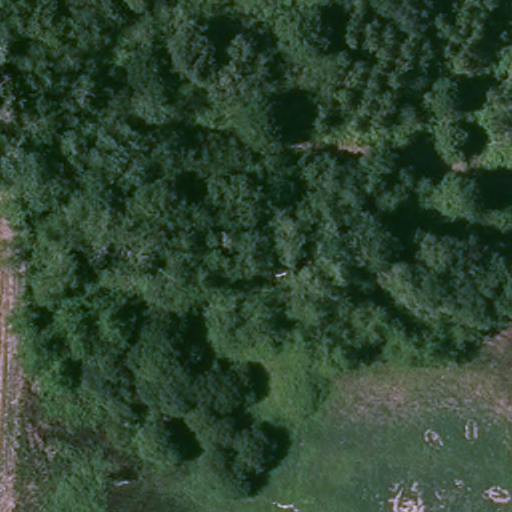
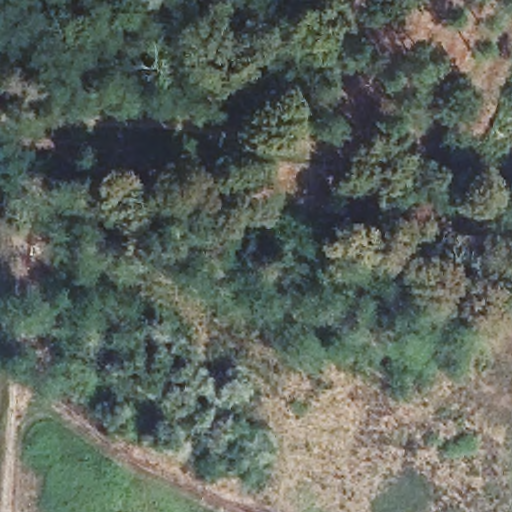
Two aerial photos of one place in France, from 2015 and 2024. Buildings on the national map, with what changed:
[]

